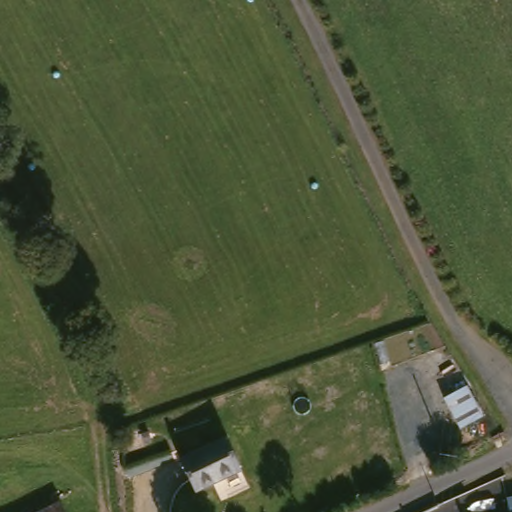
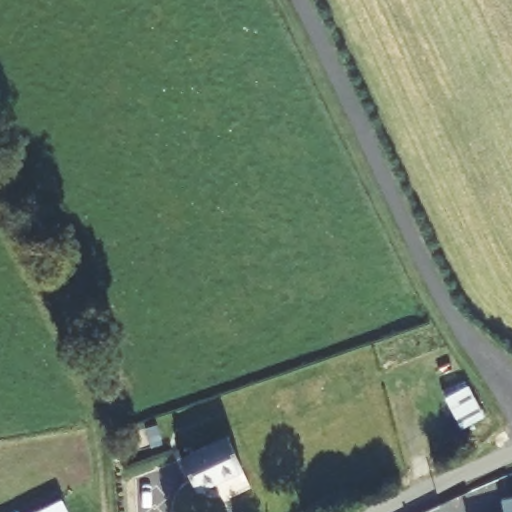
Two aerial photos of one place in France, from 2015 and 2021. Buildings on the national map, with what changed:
unchanged [(484,416),(461,428),(445,397),(467,386),(484,416)]
unchanged [(197,491),(181,459),(227,437),(242,470),(197,491)]
unchanged [(61,500),(67,512),(35,512),(61,500)]

